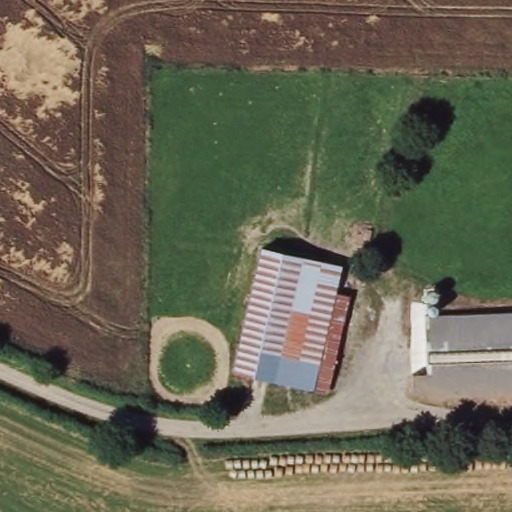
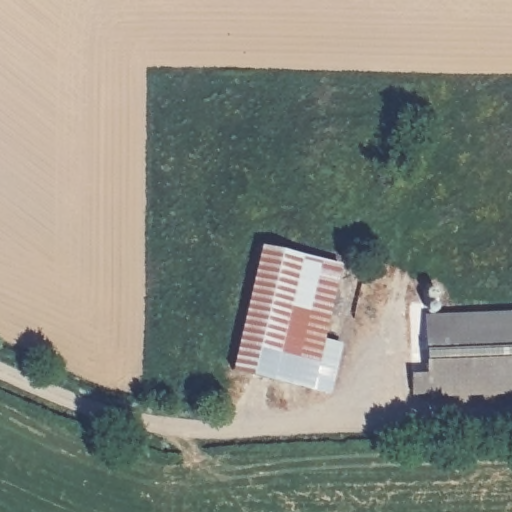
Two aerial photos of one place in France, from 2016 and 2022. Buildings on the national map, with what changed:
unchanged [(312,390),(227,372),(258,243),(342,261),(312,390)]
unchanged [(355,264),(325,393),(312,390),(342,261),(355,264)]
unchanged [(417,398),(416,395),(404,395),(404,374),(419,373),(417,315),(512,311),(512,394),(417,398)]

